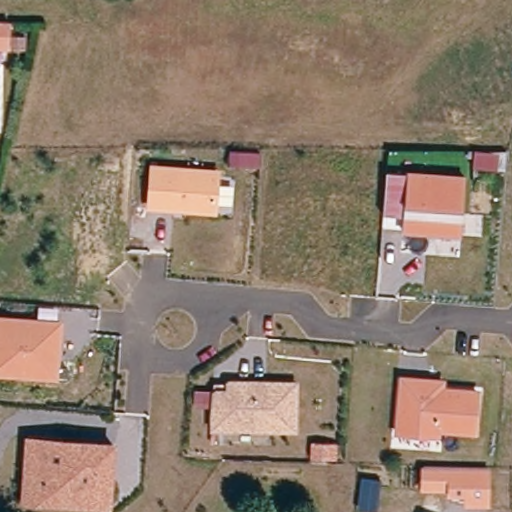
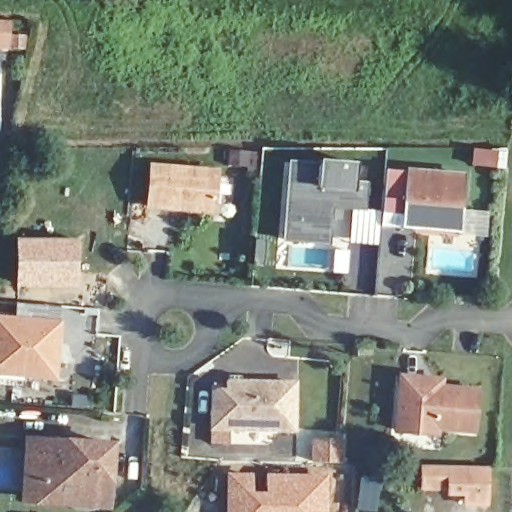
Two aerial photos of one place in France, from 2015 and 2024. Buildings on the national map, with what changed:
unchanged [(0,56),(0,31),(4,31),(2,56),(0,56)]
unchanged [(7,46),(20,47),(19,57),(7,56),(7,46)]
new [(320,243),(288,241),(290,221),(291,207),(294,163),(325,166),(325,163),(358,166),(357,184),(372,185),(371,210),(335,208),(333,226),(332,244),(320,243)]
unchanged [(151,164),(219,169),(216,212),(146,208),(151,164)]
unchanged [(387,170),(407,172),(407,169),(463,171),(460,234),(404,231),(404,215),(383,211),(387,170)]
new [(78,239),(79,286),(18,285),(18,239),(78,239)]
unchanged [(55,379),(0,374),(0,320),(59,322),(55,379)]
unchanged [(399,373),(446,376),(446,384),(477,387),(472,431),(442,427),(442,433),(393,432),(399,373)]
unchanged [(214,386),(225,386),(227,379),(297,378),(297,431),(210,428),(214,386)]
unchanged [(26,436),(114,439),(109,509),(21,503),(26,436)]
new [(344,436),(343,463),(311,462),(310,437),(344,436)]
unchanged [(486,505),(466,505),(466,495),(450,494),(450,489),(422,489),(423,466),(432,467),(487,468),(486,505)]
new [(226,472),(254,473),(254,489),(263,489),(265,472),(332,474),(330,512),(225,512),(226,472)]
unchanged [(362,478),(381,481),(377,507),(357,504),(362,478)]

